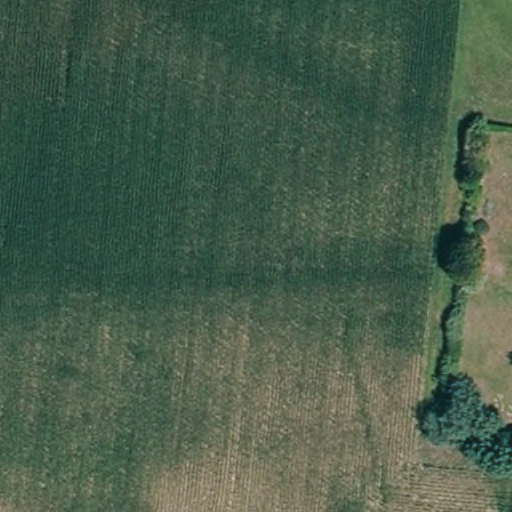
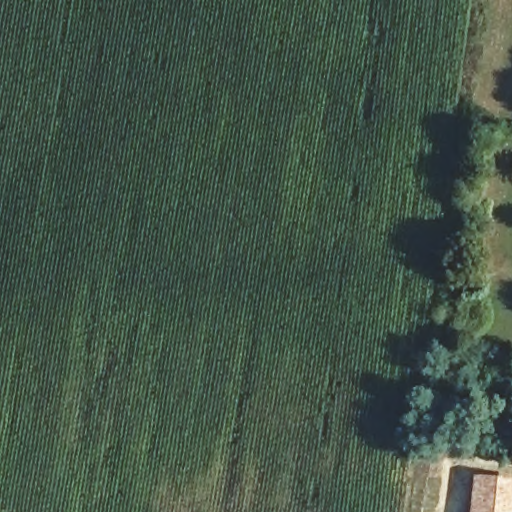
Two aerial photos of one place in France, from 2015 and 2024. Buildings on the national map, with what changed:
new [(512,512),(479,512),(482,482),(512,484),(512,512)]

